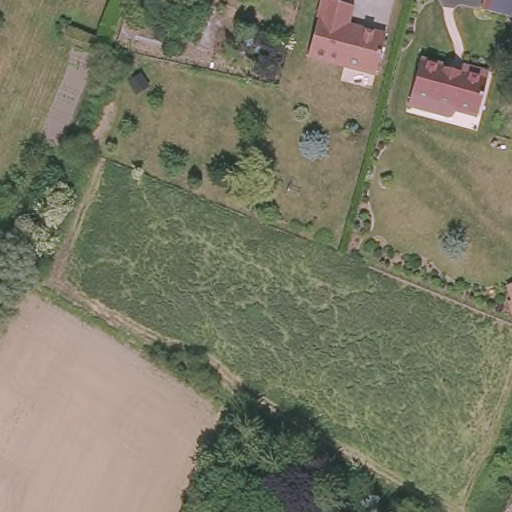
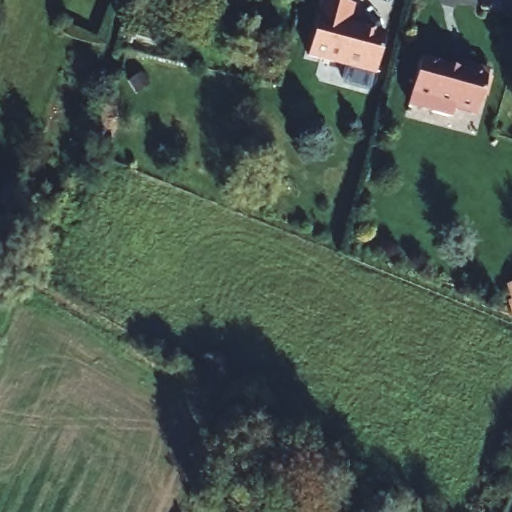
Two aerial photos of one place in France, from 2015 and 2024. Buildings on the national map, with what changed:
unchanged [(353,1),(348,21),(386,31),(376,70),(309,53),(322,0),(349,0),(353,1)]
unchanged [(512,9),(490,3),(491,0),(512,0),(512,9)]
unchanged [(163,50),(117,37),(125,9),(171,21),(163,50)]
unchanged [(443,64),(442,66),(460,71),(462,65),(486,71),(476,113),(453,107),(451,113),(444,115),(430,111),(425,107),(408,103),(420,58),(443,64)]

